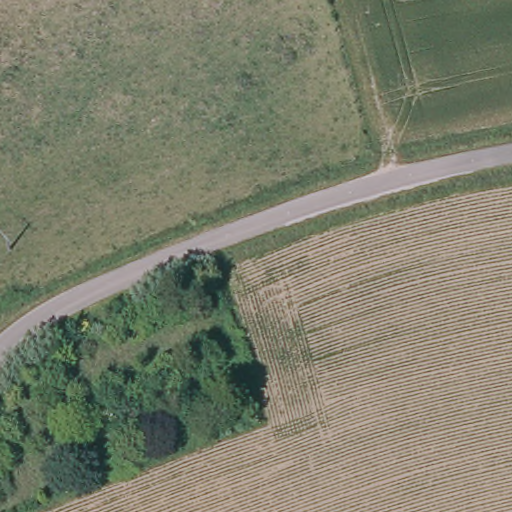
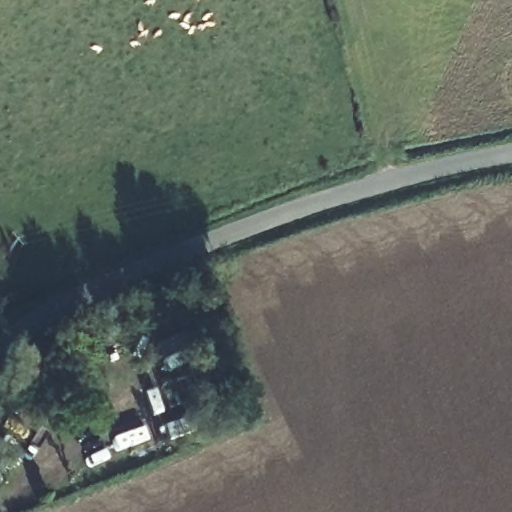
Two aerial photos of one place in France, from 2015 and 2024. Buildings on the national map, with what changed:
unchanged [(212,361),(223,383),(200,391),(192,372),(212,361)]

